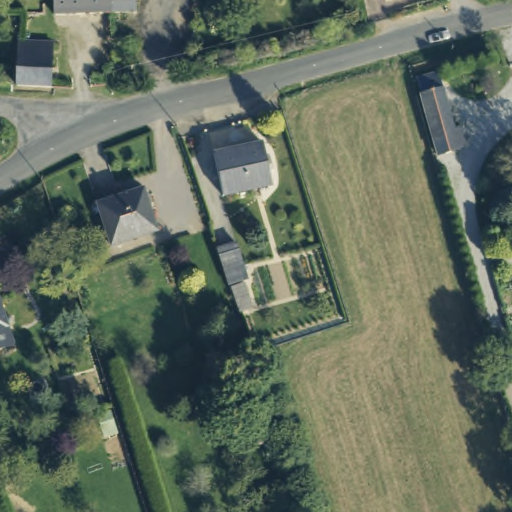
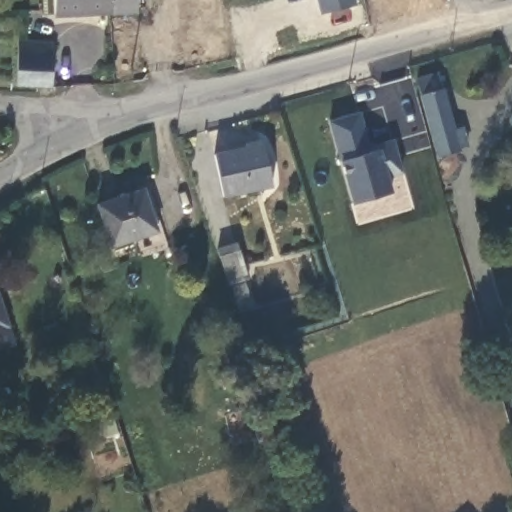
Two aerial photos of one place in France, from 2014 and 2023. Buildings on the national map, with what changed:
unchanged [(53,0),(108,0),(108,8),(53,8),(53,0)]
unchanged [(108,8),(108,0),(132,0),(132,8),(108,8)]
unchanged [(17,44),(51,44),(50,86),(15,86),(17,44)]
unchanged [(437,71),(451,126),(462,124),(468,144),(439,151),(417,76),(437,71)]
new [(389,180),(394,193),(352,204),(339,160),(327,121),(360,111),(371,145),(393,139),(404,175),(389,180)]
unchanged [(262,141),(273,184),(227,197),(215,153),(262,141)]
unchanged [(138,190),(153,231),(109,245),(94,204),(138,190)]
unchanged [(232,235),(243,266),(228,272),(218,240),(232,235)]
unchanged [(248,277),(256,300),(240,305),(232,282),(248,277)]
unchanged [(0,341),(0,309),(3,319),(11,338),(0,341)]
unchanged [(270,399),(287,446),(274,449),(270,437),(266,438),(253,404),(270,399)]

